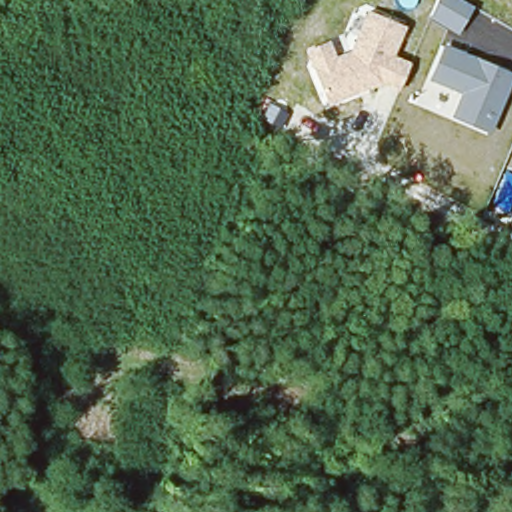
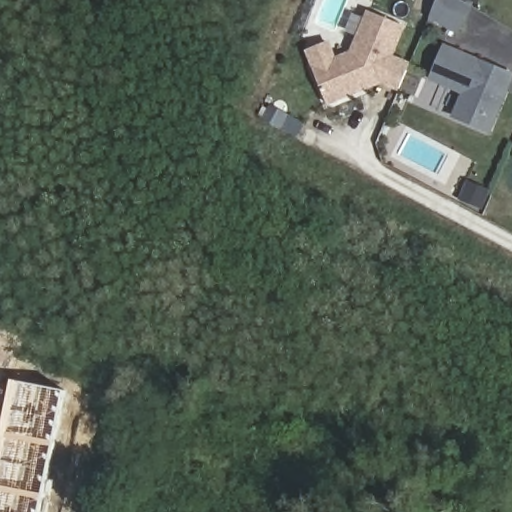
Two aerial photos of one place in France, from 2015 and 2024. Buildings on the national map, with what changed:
unchanged [(438,0),(462,0),(473,6),(458,35),(429,19),(438,0)]
unchanged [(395,55),(410,62),(398,90),(381,84),(329,106),(306,50),(331,40),(337,56),(351,52),(369,11),(408,26),(395,55)]
unchanged [(491,134),(451,117),(461,94),(429,80),(445,44),(512,73),(512,85),(491,134)]
new [(65,391),(40,512),(0,512),(0,435),(11,380),(65,391)]

